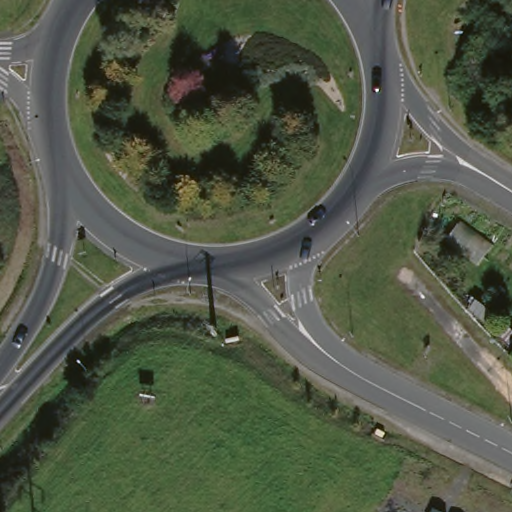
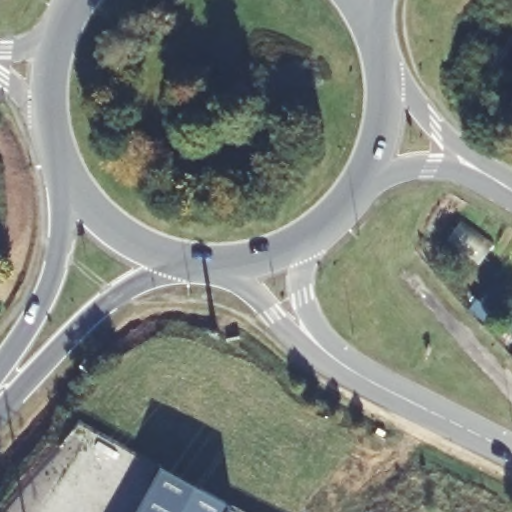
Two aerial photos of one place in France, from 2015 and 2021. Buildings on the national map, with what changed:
new [(161,468),(233,504),(229,512),(140,512),(161,468)]

